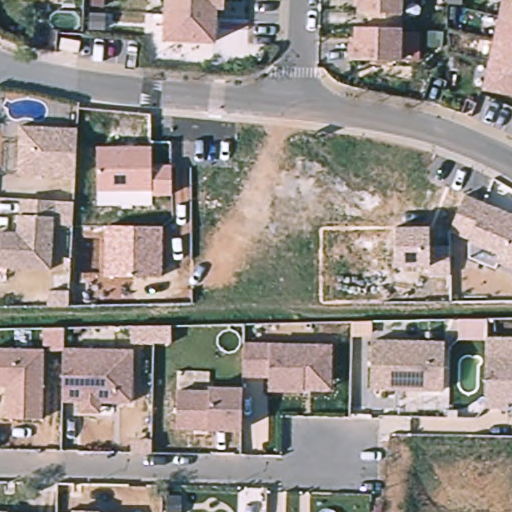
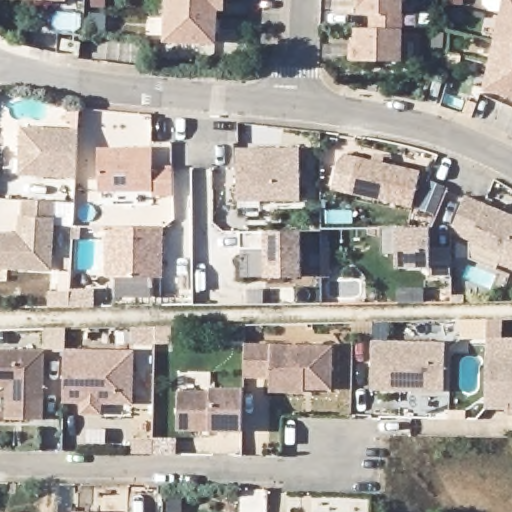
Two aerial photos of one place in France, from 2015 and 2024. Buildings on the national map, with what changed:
unchanged [(218,7),(217,42),(167,40),(169,0),(225,0),(225,7),(218,7)]
unchanged [(402,60),(352,59),(352,42),(358,42),(359,26),(373,26),(374,12),(362,12),(362,0),(404,0),(402,60)]
unchanged [(487,84),(506,0),(512,0),(512,89),(487,84)]
unchanged [(82,41),(80,52),(62,49),(64,39),(82,41)]
unchanged [(80,129),(79,142),(77,177),(20,174),(22,125),(80,129)]
new [(237,146),(299,147),(299,200),(238,201),(237,146)]
unchanged [(101,191),(99,149),(151,147),(151,164),(172,164),(173,196),(153,197),(152,190),(101,191)]
new [(412,207),(350,194),(358,156),(421,171),(412,207)]
unchanged [(487,202),(512,213),(512,269),(500,263),(502,256),(470,242),(451,234),(465,196),(487,202)]
unchanged [(53,270),(0,267),(0,233),(20,234),(21,215),(23,215),(24,200),(56,201),(53,270)]
unchanged [(163,227),(163,275),(107,275),(106,226),(163,227)]
unchanged [(431,247),(451,247),(453,274),(430,276),(430,265),(399,266),(396,228),(429,226),(431,247)]
new [(264,230),(302,229),(301,276),(264,276),(263,249),(239,249),(239,231),(264,230)]
unchanged [(485,321),(485,341),(458,341),(459,322),(485,321)]
unchanged [(443,341),(443,389),(370,388),(371,341),(443,341)]
unchanged [(303,386),(303,390),(268,389),(269,375),(242,375),(243,343),(330,344),(329,380),(329,386),(303,386)]
unchanged [(43,418),(5,418),(6,383),(0,383),(0,346),(43,346),(43,418)]
unchanged [(63,346),(131,347),(131,398),(100,398),(80,398),(62,398),(62,380),(63,346)]
unchanged [(501,410),(484,410),(485,367),(485,361),(497,361),(497,355),(512,355),(512,404),(508,403),(508,410),(501,410)]
unchanged [(177,428),(177,390),(209,391),(209,387),(242,388),(242,429),(177,428)]
unchanged [(100,398),(100,409),(80,409),(80,398),(100,398)]

